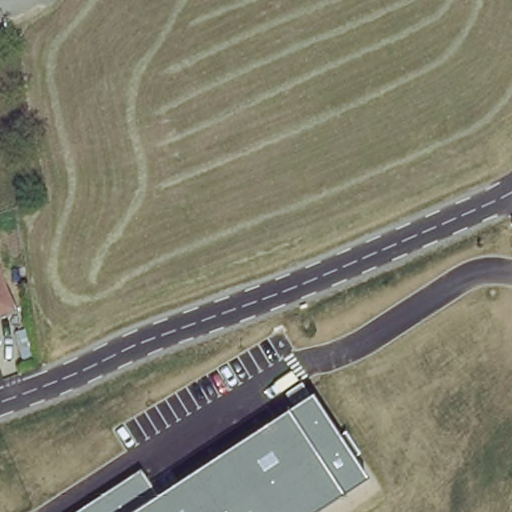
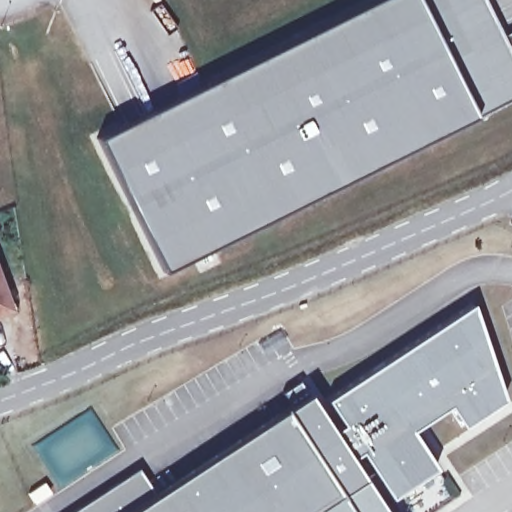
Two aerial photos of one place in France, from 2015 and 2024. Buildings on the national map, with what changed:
new [(163,270),(97,139),(377,0),(483,0),(504,41),(512,58),(512,98),(473,116),(163,270)]
unchanged [(7,310),(0,313),(0,289),(7,310)]
new [(343,426),(326,401),(472,306),(503,402),(462,427),(448,406),(411,431),(435,469),(389,498),(361,453),(353,458),(335,430),(343,426)]
unchanged [(156,494),(290,403),(285,398),(306,384),(317,402),(367,480),(317,512),(75,512),(139,468),(156,494)]
new [(317,512),(367,480),(387,512),(317,512)]
new [(43,484),(48,493),(33,503),(26,494),(43,484)]

